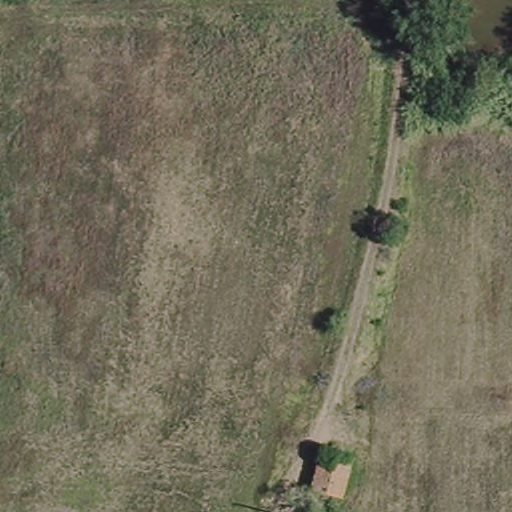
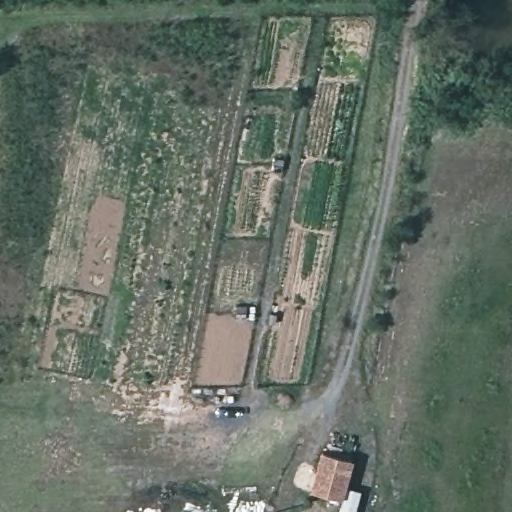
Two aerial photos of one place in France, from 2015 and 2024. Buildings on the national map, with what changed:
unchanged [(341,496),(315,489),(324,455),(350,461),(341,496)]

